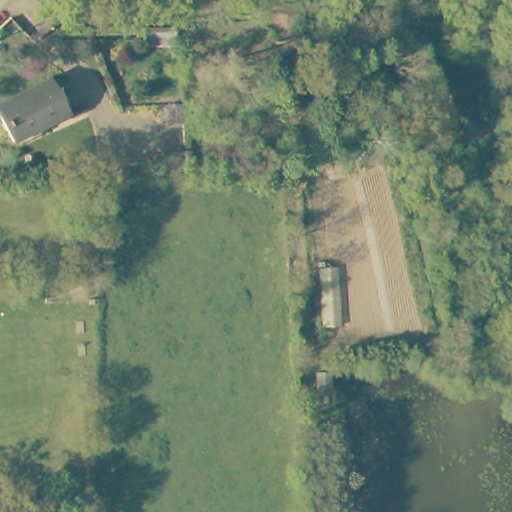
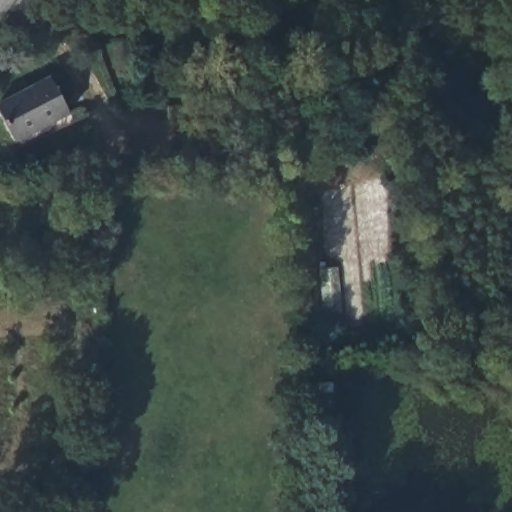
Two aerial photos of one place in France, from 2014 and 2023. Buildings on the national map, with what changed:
unchanged [(10,140),(0,120),(0,102),(46,80),(64,115),(10,140)]

